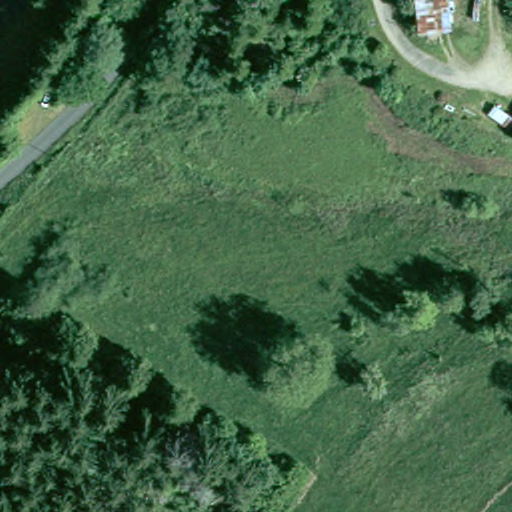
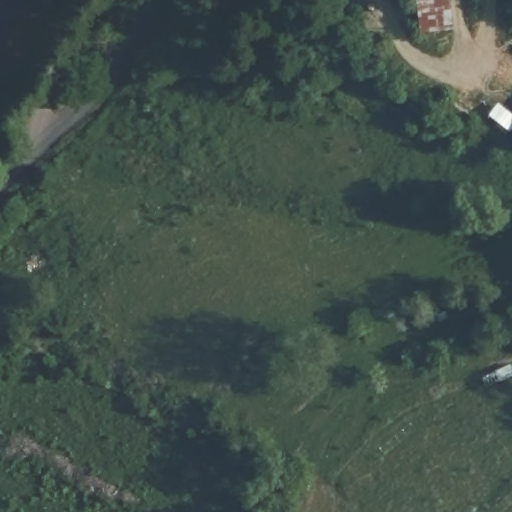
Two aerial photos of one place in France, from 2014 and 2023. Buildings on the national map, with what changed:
unchanged [(412,26),(413,0),(447,0),(448,29),(412,26)]

